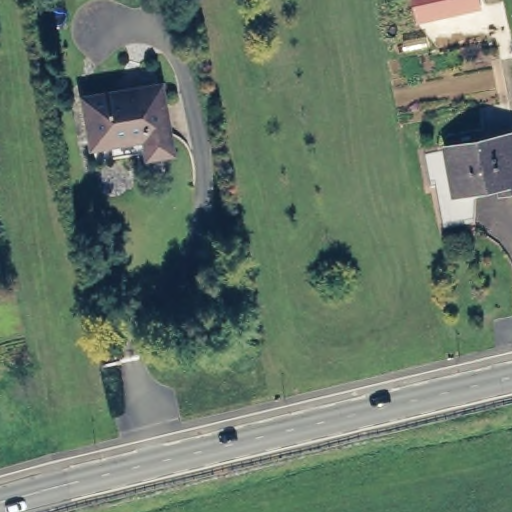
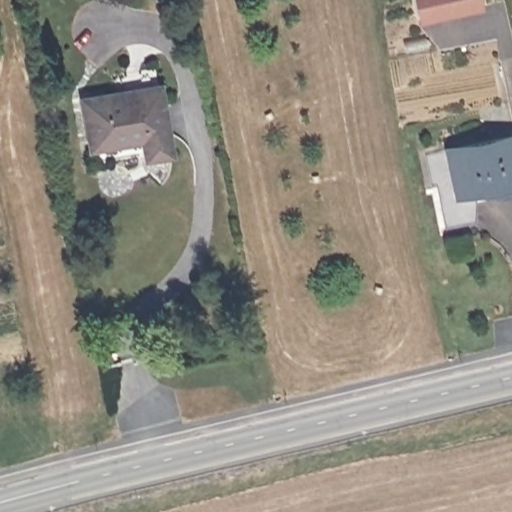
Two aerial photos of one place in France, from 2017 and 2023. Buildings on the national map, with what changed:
unchanged [(483,7),(420,21),(415,0),(481,0),(483,7)]
unchanged [(118,89),(118,91),(135,88),(135,85),(156,82),(167,145),(145,149),(142,132),(91,140),(83,95),(118,89)]
unchanged [(512,133),(512,178),(477,185),(483,216),(454,222),(445,180),(441,181),(435,148),(512,133)]

